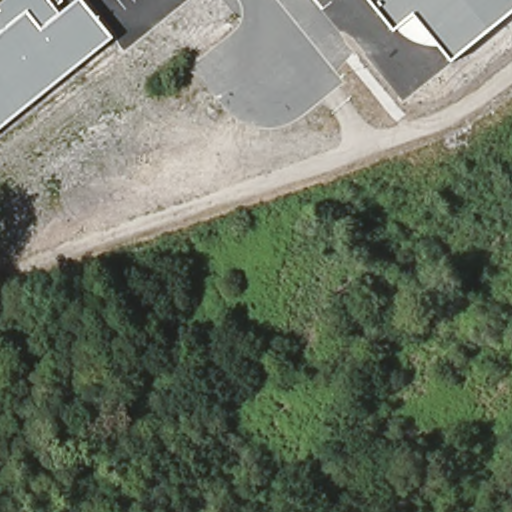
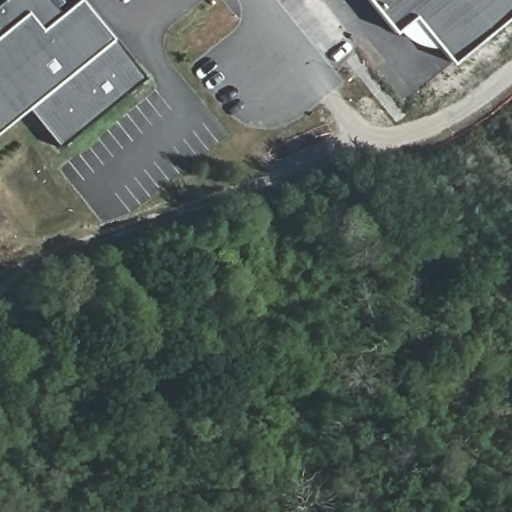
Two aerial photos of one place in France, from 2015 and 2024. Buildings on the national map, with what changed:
unchanged [(63,1),(56,7),(61,12),(79,0),(85,0),(114,39),(27,109),(0,130),(0,2),(3,0),(62,0),(63,1)]
unchanged [(452,61),(440,46),(431,47),(418,45),(408,40),(401,34),(397,28),(392,32),(367,0),(512,0),(512,13),(452,61)]
new [(114,39),(144,79),(59,149),(27,109),(114,39)]

